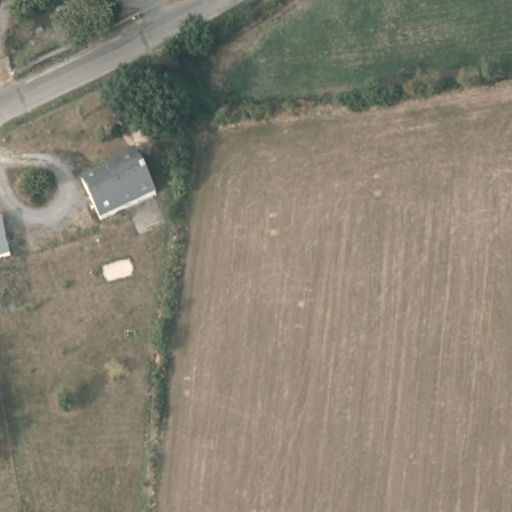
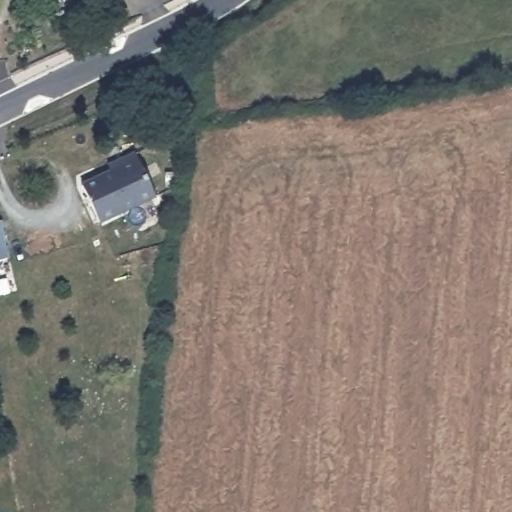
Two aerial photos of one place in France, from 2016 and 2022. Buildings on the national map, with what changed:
unchanged [(137,159),(154,197),(97,223),(78,184),(137,159)]

